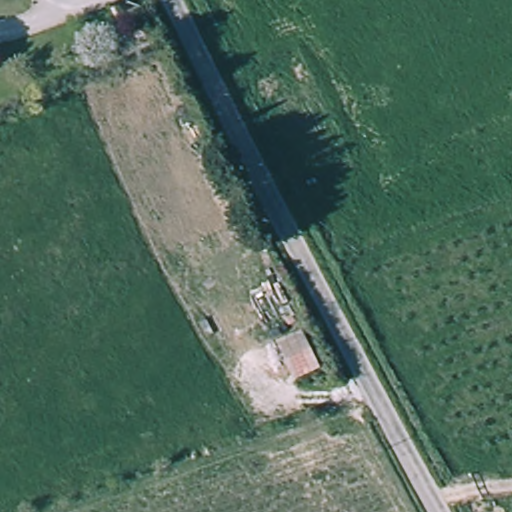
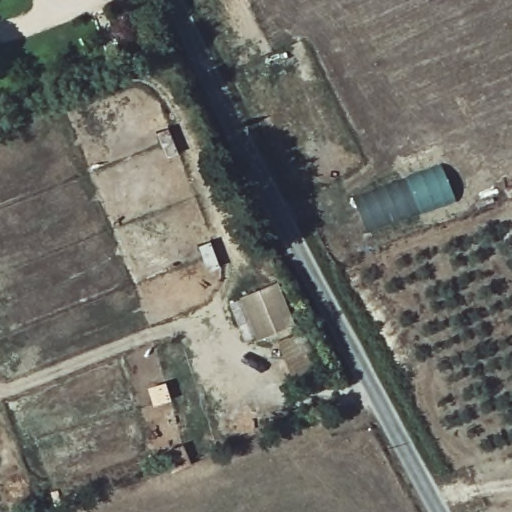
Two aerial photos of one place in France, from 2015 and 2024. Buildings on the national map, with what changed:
new [(441,165),(456,199),(368,232),(353,198),(441,165)]
new [(276,279),(295,323),(257,339),(239,296),(276,279)]
new [(303,328),(322,371),(295,383),(276,340),(303,328)]

